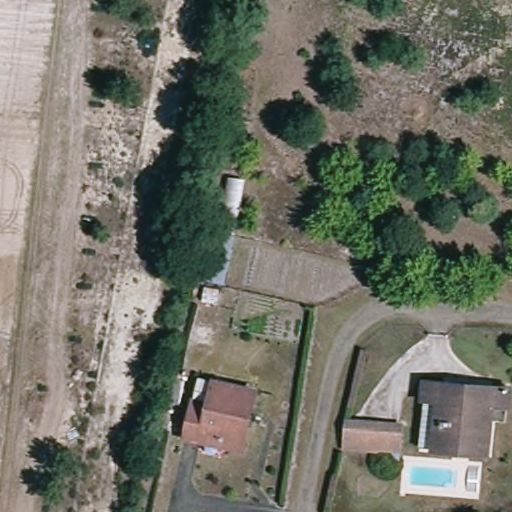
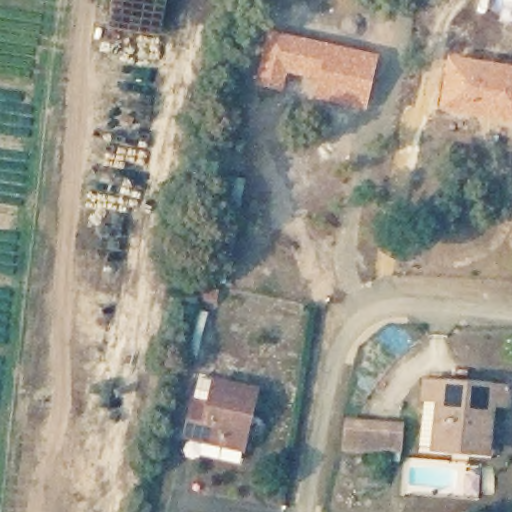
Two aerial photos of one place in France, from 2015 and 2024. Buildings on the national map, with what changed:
new [(260,29),(380,55),(365,112),(301,96),(305,79),(288,74),(283,94),(250,85),(260,29)]
new [(512,65),(512,122),(437,110),(447,54),(512,65)]
demolished [(240,315),(232,354),(190,345),(199,307),(240,315)]
unchanged [(256,389),(245,450),(188,441),(200,380),(256,389)]
unchanged [(421,405),(422,386),(506,390),(506,408),(490,408),(488,453),(438,451),(419,450),(421,405)]
unchanged [(345,422),(397,425),(402,432),(401,453),(343,450),(345,422)]

